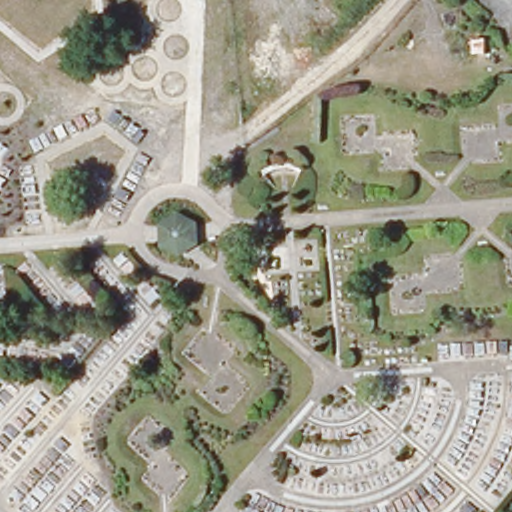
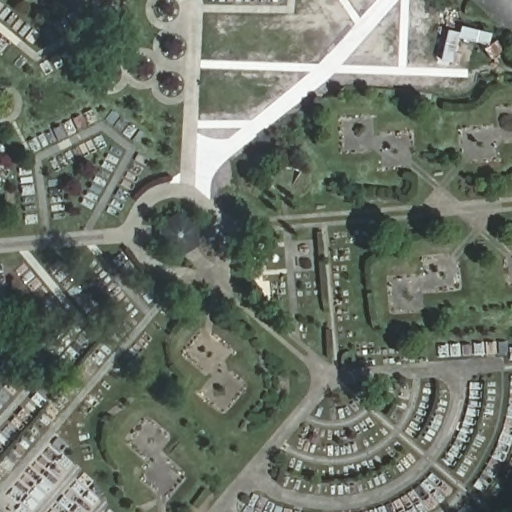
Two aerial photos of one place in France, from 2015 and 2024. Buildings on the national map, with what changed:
unchanged [(199,244),(180,256),(160,245),(159,224),(177,212),(198,223),(199,244)]

